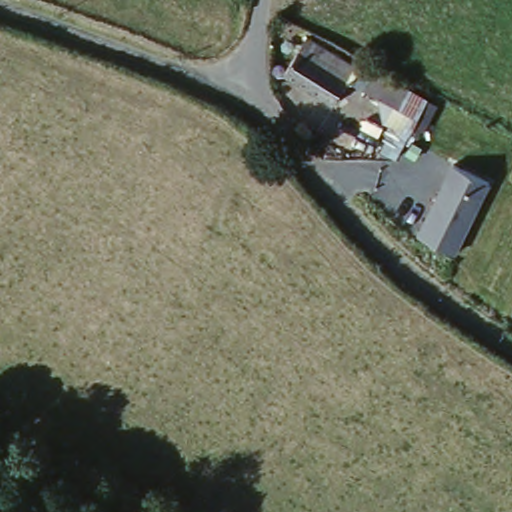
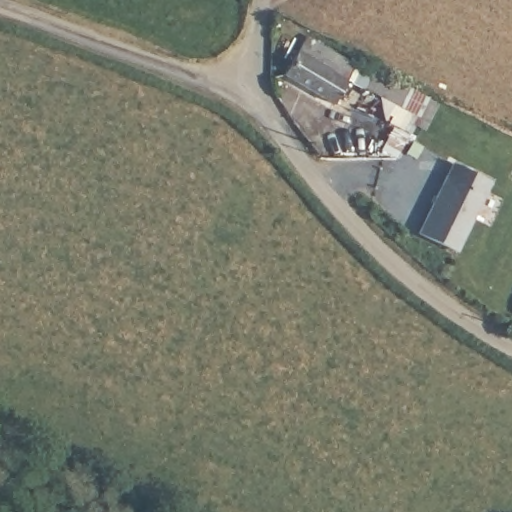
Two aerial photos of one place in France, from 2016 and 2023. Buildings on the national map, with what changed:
unchanged [(352,57),(327,102),(282,79),(307,31),(352,57)]
unchanged [(427,104),(407,138),(382,123),(377,98),(362,90),(374,71),(427,104)]
unchanged [(450,160),(488,180),(462,246),(419,228),(450,160)]

